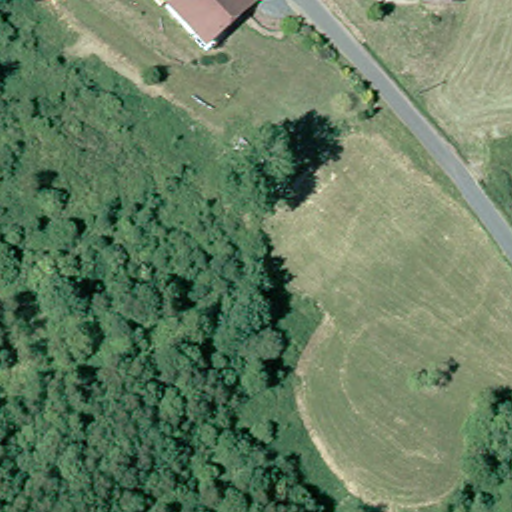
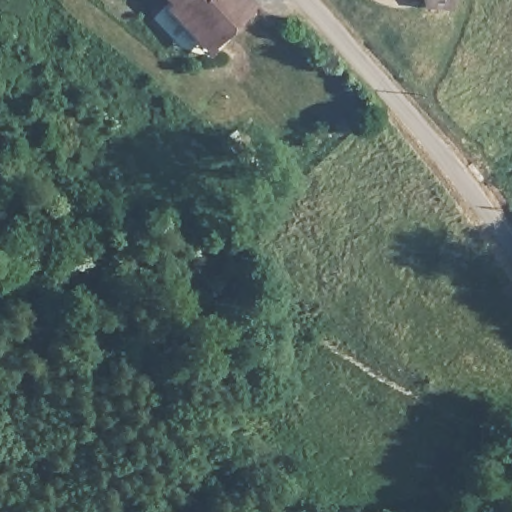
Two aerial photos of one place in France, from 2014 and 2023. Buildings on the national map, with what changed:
unchanged [(195,38),(167,8),(172,4),(168,0),(249,0),(254,6),(213,43),(206,50),(195,38)]
unchanged [(441,5),(418,3),(418,0),(441,0),(441,5)]

